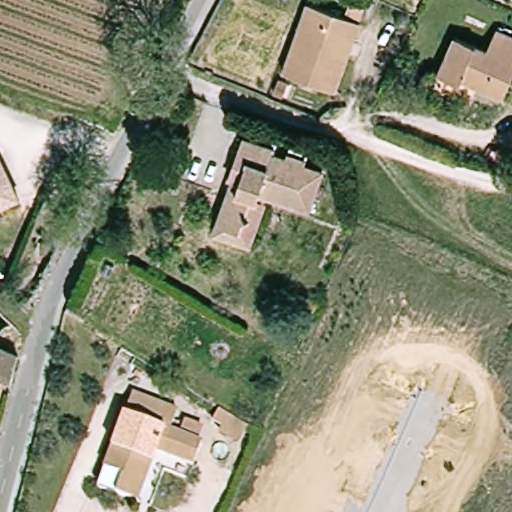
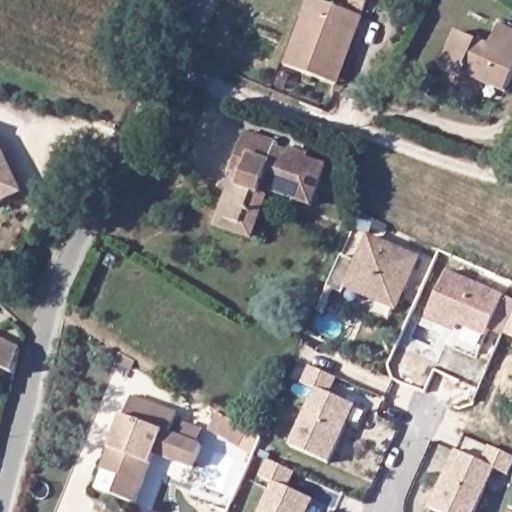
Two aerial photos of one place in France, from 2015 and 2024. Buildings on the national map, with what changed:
unchanged [(367,16),(355,11),(359,0),(373,0),(367,16)]
unchanged [(331,84),(289,65),(313,1),(365,24),(359,39),(340,87),(334,85),(331,84)]
unchanged [(435,84),(441,70),(457,31),(494,45),(502,27),(512,32),(512,86),(509,94),(479,82),(471,98),(435,84)]
unchanged [(329,165),(312,217),(270,202),(261,228),(249,223),(243,238),(228,233),(246,177),(237,172),(250,137),(329,165)]
unchanged [(0,207),(0,140),(28,192),(0,207)]
new [(344,255),(360,261),(371,236),(420,257),(398,307),(349,286),(346,293),(330,286),(344,255)]
new [(450,266),(512,293),(512,317),(505,332),(504,335),(490,329),(488,335),(461,324),(458,330),(457,330),(428,317),(450,266)]
new [(512,317),(512,336),(505,332),(512,317)]
unchanged [(16,376),(8,372),(0,382),(0,344),(23,353),(16,376)]
new [(318,388),(304,382),(311,366),(337,377),(331,392),(357,403),(331,462),(292,445),(318,388)]
unchanged [(140,396),(185,415),(176,435),(207,449),(198,471),(160,455),(139,505),(117,496),(124,478),(108,471),(140,396)]
unchanged [(226,422),(246,435),(237,450),(217,437),(219,432),(210,426),(216,416),(226,422)]
new [(482,461),(489,445),(512,455),(512,464),(508,473),(494,467),(486,486),(474,512),(439,512),(430,508),(456,450),(482,461)]
new [(262,477),(269,460),(295,472),(288,488),(314,500),(308,512),(262,512),(275,483),(262,477)]

